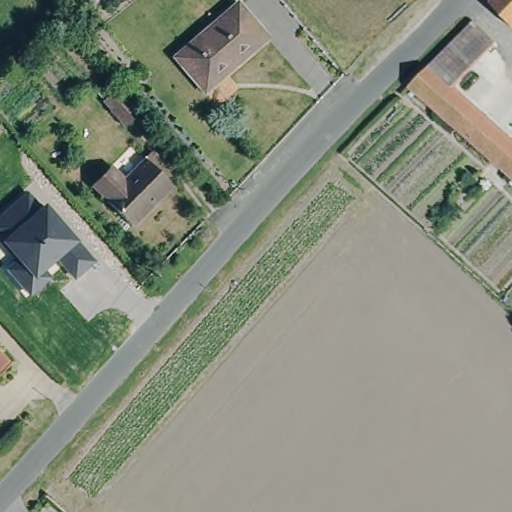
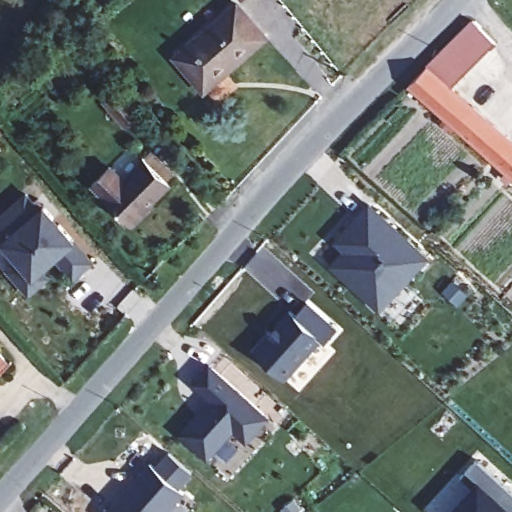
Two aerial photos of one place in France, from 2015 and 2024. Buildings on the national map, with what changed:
unchanged [(238,4),(235,0),(243,0),(238,4)]
unchanged [(485,2),(487,0),(512,0),(512,30),(485,2)]
unchanged [(172,60),(233,7),(261,40),(199,93),(172,60)]
unchanged [(502,176),(507,172),(457,127),(453,132),(442,122),(446,117),(432,105),(410,85),(452,41),(474,20),(490,36),(447,81),(512,142),(512,179),(509,182),(502,176)]
unchanged [(105,105),(100,98),(113,87),(118,94),(138,120),(123,130),(105,105)]
unchanged [(102,200),(103,199),(92,182),(110,167),(123,184),(147,164),(152,160),(171,182),(165,187),(154,196),(157,201),(125,226),(102,200)]
unchanged [(95,260),(75,278),(57,256),(45,267),(55,281),(33,300),(0,265),(0,263),(10,254),(0,243),(0,211),(27,187),(95,260)]
new [(370,302),(348,282),(332,267),(337,262),(345,252),(335,244),(369,206),(427,260),(393,296),(380,311),(370,302)]
new [(295,315),(309,298),(339,326),(325,341),(321,337),(285,379),(253,351),(290,310),(295,315)]
unchanged [(8,362),(0,370),(0,352),(8,362)]
new [(268,417),(246,440),(233,429),(208,457),(182,435),(214,400),(195,382),(210,365),(268,417)]
new [(447,412),(458,422),(442,440),(430,430),(447,412)]
new [(462,477),(477,460),(512,492),(512,512),(454,512),(475,489),(462,477)]
new [(166,512),(109,512),(151,465),(184,492),(166,512)]
new [(301,512),(284,512),(283,511),(295,502),(302,511),(301,512)]

